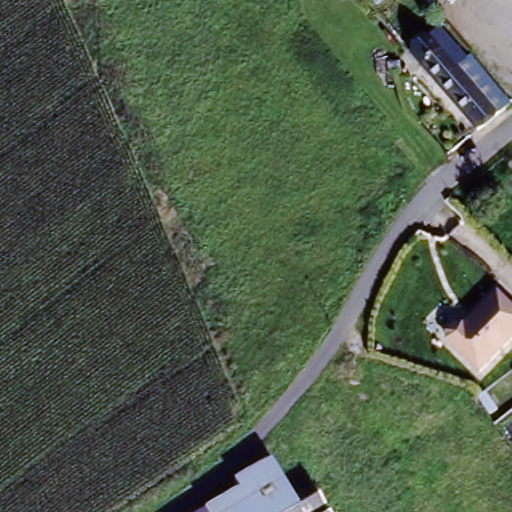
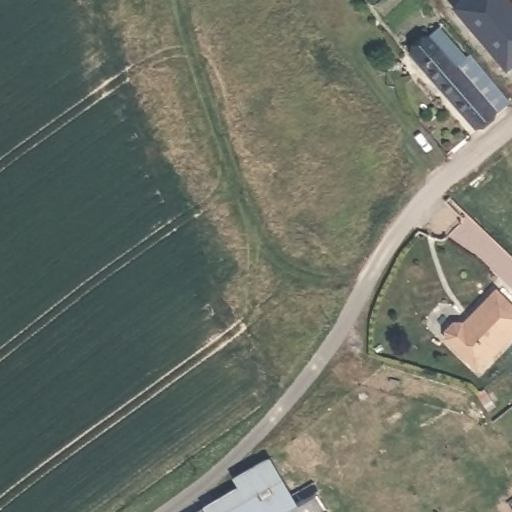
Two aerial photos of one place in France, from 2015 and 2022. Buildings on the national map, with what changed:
new [(467,0),(506,0),(512,7),(512,68),(510,71),(455,12),(467,0)]
unchanged [(507,109),(500,115),(482,133),(399,37),(425,12),(439,29),(507,109)]
unchanged [(447,339),(447,332),(455,323),(464,325),(496,292),(512,307),(512,338),(479,372),(447,339)]
unchanged [(235,481),(270,460),(299,507),(317,496),(326,512),(201,512),(240,489),(235,481)]

